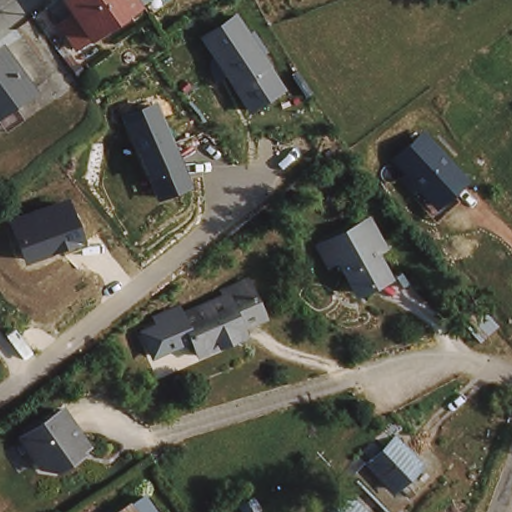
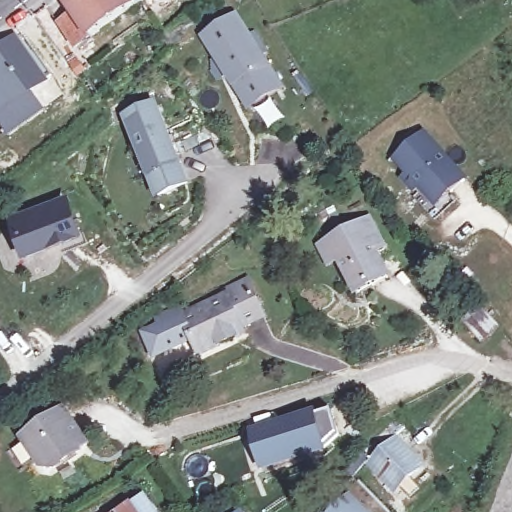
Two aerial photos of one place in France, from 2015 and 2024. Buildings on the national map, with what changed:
unchanged [(71,0),(137,0),(141,5),(95,37),(80,47),(64,21),(78,11),(71,0)]
unchanged [(148,1),(148,0),(149,0),(148,1)]
unchanged [(283,87),(250,110),(204,35),(241,14),(283,87)]
unchanged [(31,85),(9,101),(0,87),(0,48),(4,45),(31,85)]
unchanged [(0,87),(9,101),(0,107),(0,87)]
unchanged [(189,186),(161,197),(128,117),(158,104),(189,186)]
unchanged [(434,215),(414,192),(418,189),(412,182),(404,172),(408,168),(394,153),(422,129),(462,175),(448,187),(456,196),(434,215)]
unchanged [(69,200),(83,241),(23,263),(9,218),(69,200)]
unchanged [(376,245),(379,251),(371,256),(383,280),(355,295),(337,260),(326,266),(318,250),(329,244),(366,224),(376,245)]
unchanged [(229,340),(196,356),(188,341),(175,347),(151,358),(141,335),(164,323),(218,297),(218,295),(243,283),(260,318),(237,329),(240,335),(229,340)]
unchanged [(479,306),(498,327),(481,341),(463,320),(479,306)]
new [(331,410),(338,434),(324,447),(262,465),(253,432),(331,410)]
unchanged [(93,447),(60,472),(48,471),(27,442),(68,412),(93,447)]
unchanged [(416,487),(408,495),(406,497),(395,486),(390,490),(364,462),(392,437),(404,450),(417,465),(407,475),(405,476),(407,478),(416,487)]
unchanged [(330,512),(350,493),(368,512),(330,512)]
unchanged [(151,512),(116,512),(141,496),(151,512)]

